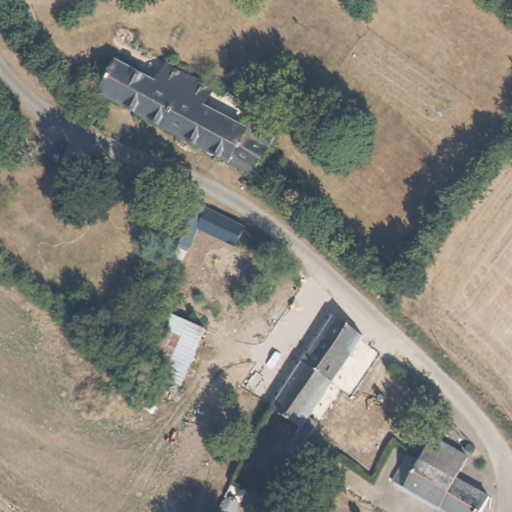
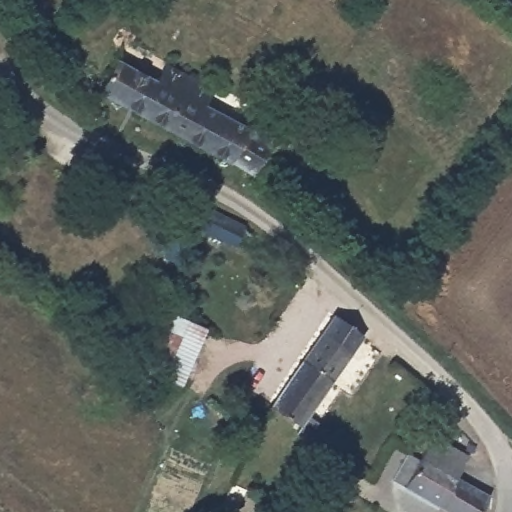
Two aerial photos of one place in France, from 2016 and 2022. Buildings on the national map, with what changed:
unchanged [(119,58),(155,79),(165,63),(211,89),(202,104),(240,127),(247,116),(276,134),(253,172),(102,86),(119,58)]
unchanged [(201,207),(236,226),(227,240),(193,224),(201,207)]
unchanged [(158,257),(168,239),(181,245),(179,248),(170,264),(158,257)]
unchanged [(170,313),(203,330),(178,381),(178,382),(144,370),(170,313)]
unchanged [(312,429),(316,432),(310,442),(293,431),(297,426),(270,407),(334,316),(360,337),(303,417),(315,424),(312,429)]
unchanged [(466,453),(453,476),(487,497),(479,512),(449,512),(391,479),(407,453),(417,457),(432,432),(466,453)]
unchanged [(242,489),(236,502),(239,509),(238,512),(214,512),(214,506),(216,501),(222,497),(231,482),(242,489)]

